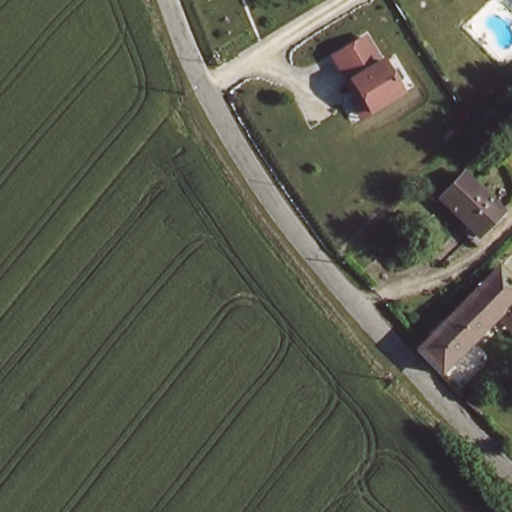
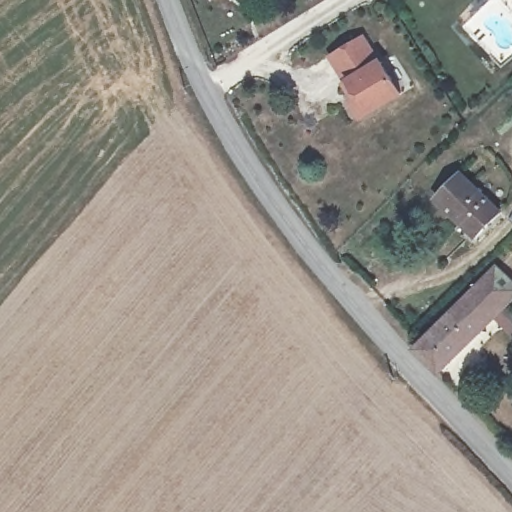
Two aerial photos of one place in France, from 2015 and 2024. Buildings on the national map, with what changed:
unchanged [(365,39),(367,43),(381,64),(383,62),(403,93),(372,114),(362,99),(358,102),(347,85),(350,84),(336,63),(333,59),(365,39)]
unchanged [(475,240),(440,204),(465,176),(500,215),(475,240)]
unchanged [(512,273),(512,311),(442,374),(418,345),(505,266),(512,273)]

